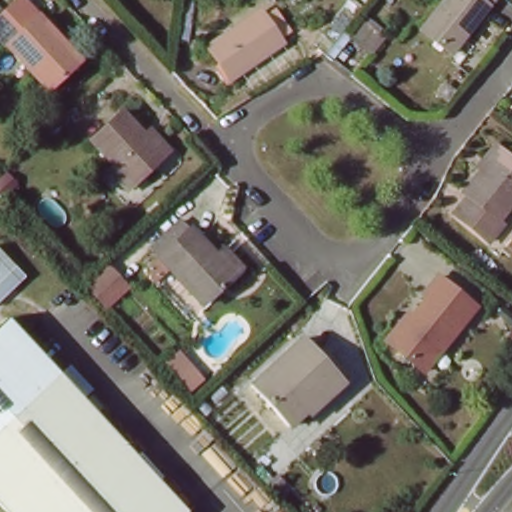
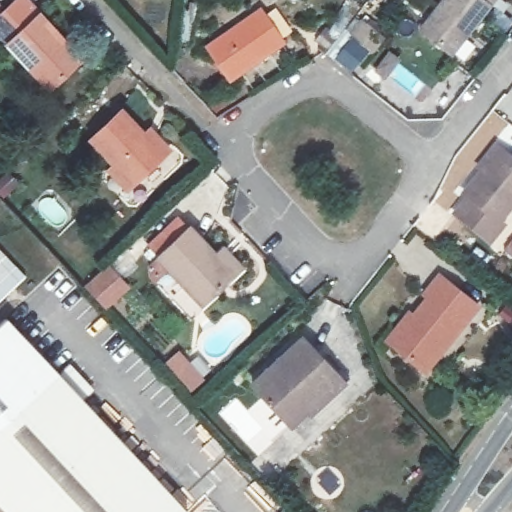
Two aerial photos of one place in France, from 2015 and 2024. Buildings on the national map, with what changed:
unchanged [(8,44),(5,46),(0,41),(0,16),(20,0),(32,0),(41,12),(38,16),(8,44)]
unchanged [(425,23),(442,0),(492,0),(456,47),(425,23)]
unchanged [(259,9),(281,40),(231,76),(208,45),(225,31),(226,33),(259,9)]
unchanged [(80,62),(50,90),(8,44),(38,16),(80,62)]
unchanged [(104,167),(109,162),(87,136),(119,109),(146,139),(151,133),(165,149),(128,182),(122,188),(104,167)]
unchanged [(507,222),(493,240),(457,211),(472,194),(466,190),(483,168),(479,164),(497,141),(502,145),(512,154),(512,206),(502,218),(507,222)]
unchanged [(231,273),(199,303),(156,257),(189,228),(231,273)]
unchanged [(2,311),(0,309),(0,248),(31,281),(2,311)]
unchanged [(111,314),(90,292),(115,266),(138,291),(111,314)]
unchanged [(410,313),(414,316),(430,297),(426,294),(440,275),(478,306),(426,370),(392,343),(388,340),(410,313)]
unchanged [(185,509),(181,512),(6,512),(0,506),(0,316),(51,369),(185,509)]
unchanged [(306,411),(302,406),(284,423),(251,385),(302,339),(330,370),(339,380),(306,411)]

